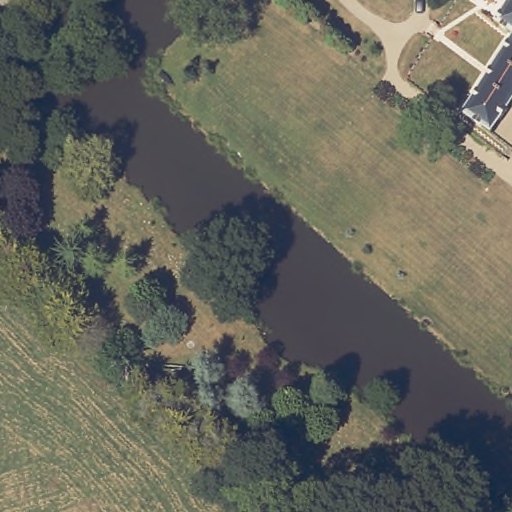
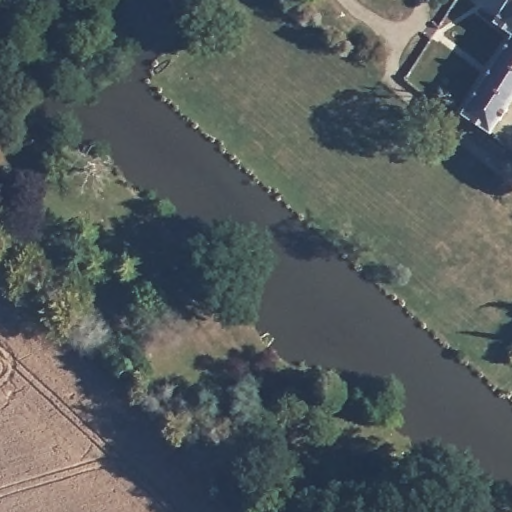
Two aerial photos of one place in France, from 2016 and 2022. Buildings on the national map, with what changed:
unchanged [(489,134),(461,115),(512,37),(494,24),(510,0),(512,0),(512,100),(489,134)]

